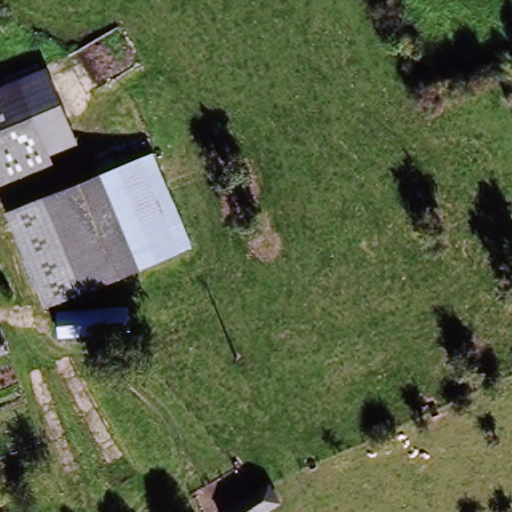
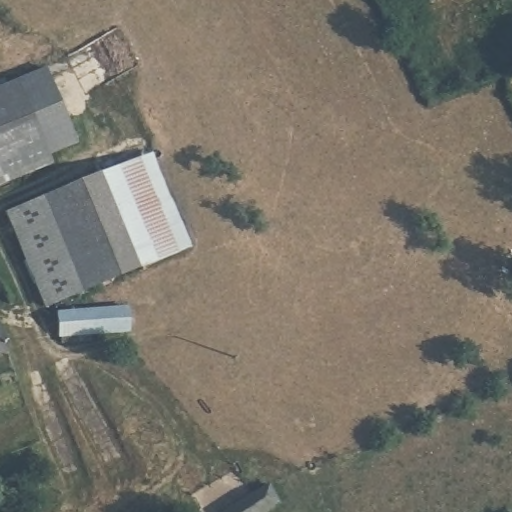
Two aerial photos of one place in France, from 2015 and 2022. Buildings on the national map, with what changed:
unchanged [(83,156),(0,192),(0,93),(49,72),(83,156)]
unchanged [(178,257),(51,313),(11,220),(139,165),(178,257)]
unchanged [(132,315),(133,340),(58,343),(57,321),(132,315)]
unchanged [(11,360),(0,364),(0,332),(11,360)]
unchanged [(282,512),(234,512),(272,490),(282,512)]

